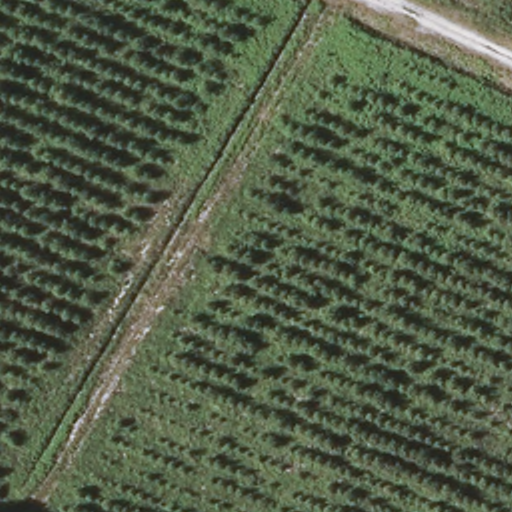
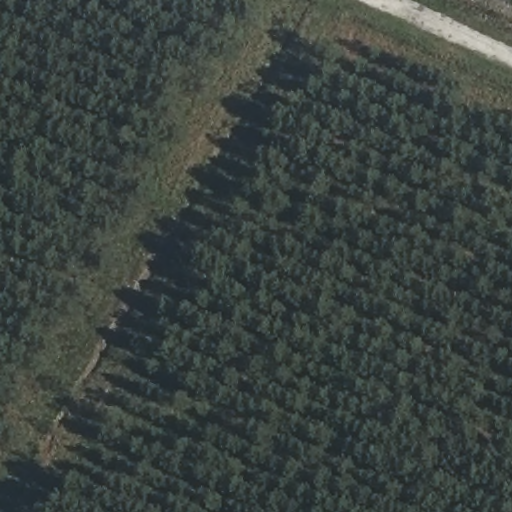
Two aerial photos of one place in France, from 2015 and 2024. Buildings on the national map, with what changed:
[]

